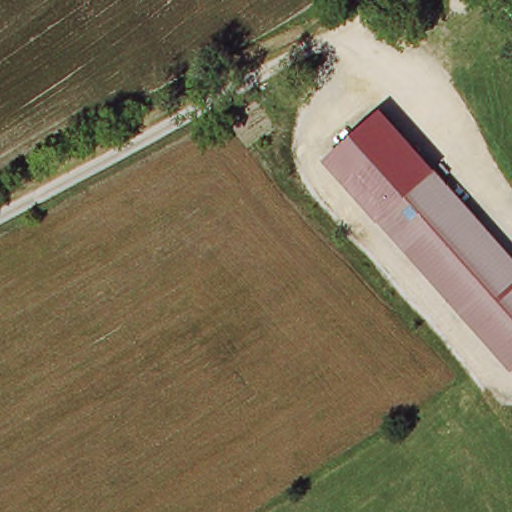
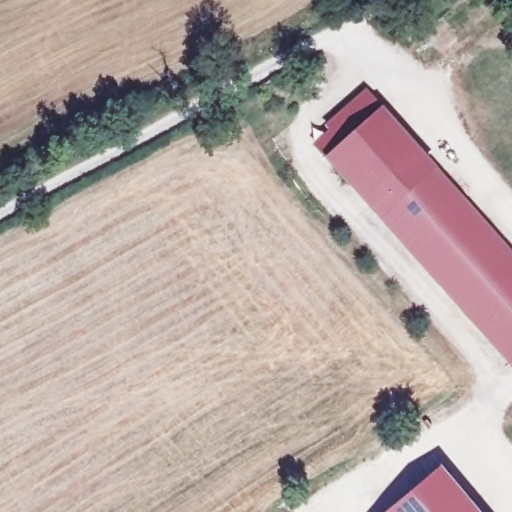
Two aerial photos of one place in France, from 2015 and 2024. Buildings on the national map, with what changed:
unchanged [(512,367),(511,367),(331,163),(385,112),(512,256),(512,367)]
new [(444,463),(485,512),(386,512),(444,463)]

